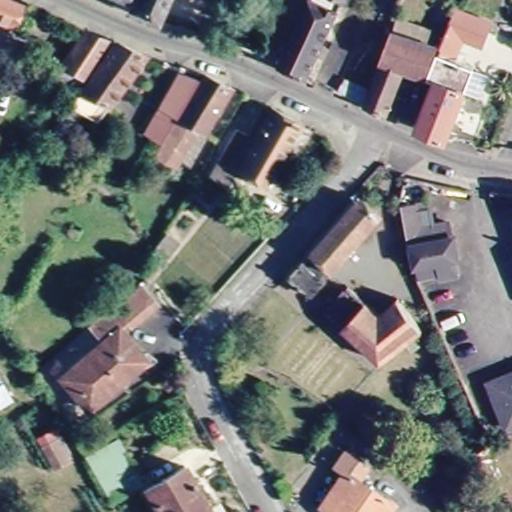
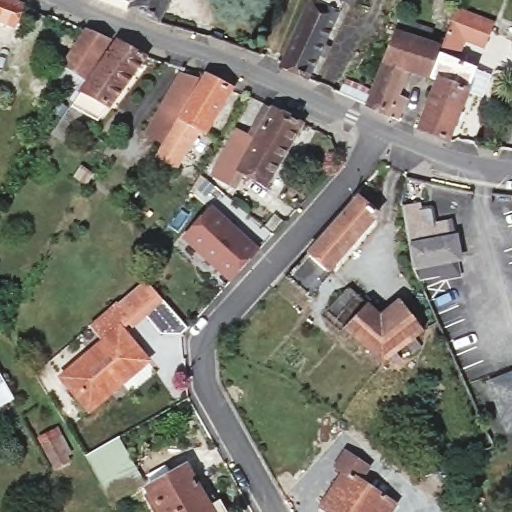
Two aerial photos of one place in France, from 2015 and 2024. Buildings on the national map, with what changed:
unchanged [(0,22),(0,0),(6,0),(24,7),(15,28),(0,22)]
unchanged [(154,25),(124,11),(128,4),(119,0),(166,0),(154,25)]
unchanged [(306,0),(353,0),(352,4),(343,1),(304,80),(275,67),(277,63),(306,0)]
unchanged [(479,41),(461,33),(452,55),(472,63),(442,135),(417,124),(435,77),(429,75),(442,46),(439,44),(454,6),(488,19),(479,41)]
unchanged [(437,43),(427,74),(404,66),(386,111),(363,101),(393,28),(437,43)]
unchanged [(105,42),(78,85),(56,73),(81,32),(105,42)]
unchanged [(113,42),(143,59),(104,106),(86,95),(79,106),(70,100),(110,45),(113,42)]
unchanged [(144,135),(160,107),(163,109),(185,72),(198,80),(175,118),(177,119),(160,145),(144,135)]
unchanged [(207,75),(233,89),(207,133),(202,130),(178,170),(174,167),(169,176),(153,166),(207,75)]
unchanged [(337,88),(343,75),(366,86),(361,99),(337,88)]
unchanged [(264,188),(237,173),(230,187),(209,176),(232,131),(252,141),(268,110),(298,125),(264,188)]
unchanged [(434,271),(433,267),(413,269),(409,258),(404,236),(398,197),(414,194),(418,217),(441,213),(444,231),(449,230),(454,252),(449,252),(452,269),(434,271)]
unchanged [(358,199),(377,217),(306,295),(287,277),(358,199)]
new [(207,214),(254,256),(228,285),(182,243),(207,214)]
unchanged [(151,309),(125,331),(145,354),(121,375),(123,377),(88,407),(60,374),(106,335),(94,320),(133,287),(151,309)]
unchanged [(381,316),(401,300),(424,332),(382,365),(355,339),(342,329),(364,303),(381,316)]
unchanged [(493,379),(512,372),(512,423),(511,423),(493,379)]
unchanged [(0,409),(0,380),(12,402),(0,409)]
unchanged [(118,439),(142,481),(119,500),(113,494),(105,496),(87,455),(118,439)]
unchanged [(70,464),(58,471),(44,448),(57,441),(70,464)]
unchanged [(334,470),(346,452),(372,469),(362,483),(395,506),(391,512),(325,512),(322,510),(344,476),(334,470)]
unchanged [(188,467),(204,498),(212,494),(221,512),(160,512),(147,489),(188,467)]

